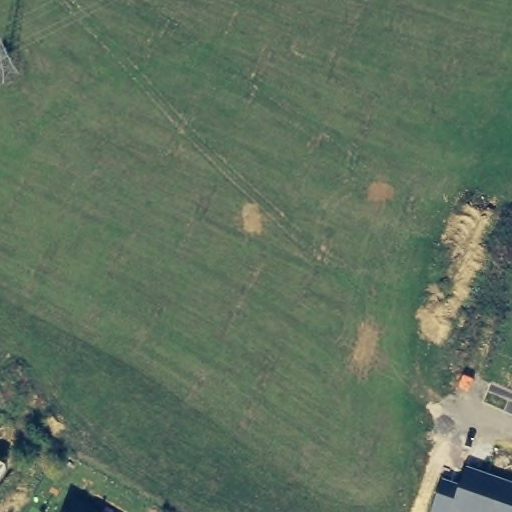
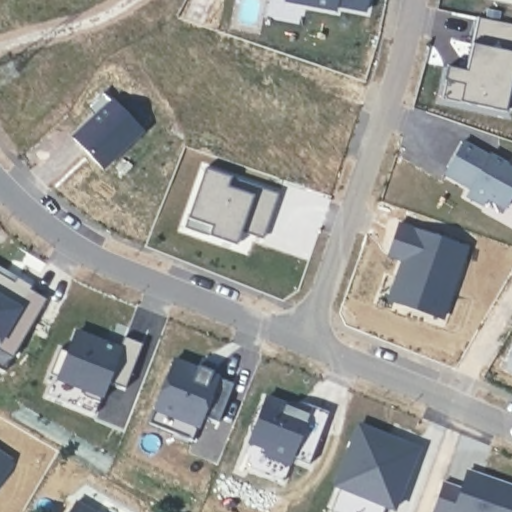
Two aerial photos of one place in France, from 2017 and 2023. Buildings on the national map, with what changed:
new [(295,0),(378,0),(376,10),(346,7),(346,11),(295,2),(295,0)]
new [(512,2),(503,0),(512,0),(512,2)]
new [(448,86),(451,72),(468,76),(479,22),(512,30),(512,100),(509,117),(446,104),(449,86),(448,86)]
new [(113,103),(141,133),(101,171),(73,141),(113,103)]
new [(490,158),(491,157),(509,166),(508,168),(512,171),(512,202),(507,210),(489,200),(486,207),(469,197),(473,190),(447,175),(464,144),(490,158)]
new [(211,240),(184,231),(204,171),(279,196),(271,218),(263,242),(253,239),(241,235),(236,249),(211,240)]
new [(401,226),(467,246),(445,318),(399,304),(407,280),(402,278),(407,261),(392,257),(401,226)]
new [(19,279),(34,288),(32,291),(48,301),(14,360),(0,352),(0,268),(19,279)]
new [(53,384),(48,382),(61,351),(70,354),(78,334),(122,351),(126,338),(144,345),(127,390),(109,383),(96,416),(48,397),(53,384)]
new [(14,360),(6,373),(0,370),(0,352),(14,360)]
new [(183,369),(206,379),(207,375),(221,381),(218,385),(239,394),(223,431),(208,424),(198,447),(156,429),(183,369)]
new [(269,400),(310,416),(314,406),(332,413),(312,467),(294,460),(286,483),(247,468),(251,457),(246,455),(269,400)]
new [(382,512),(335,512),(331,510),(341,489),(332,486),(356,422),(421,447),(394,510),(384,506),(382,512)]
new [(16,471),(0,496),(0,460),(16,471)]
unchanged [(512,512),(432,512),(442,481),(459,486),(467,468),(512,485),(512,512)]
unchanged [(97,512),(68,512),(75,499),(97,512)]

